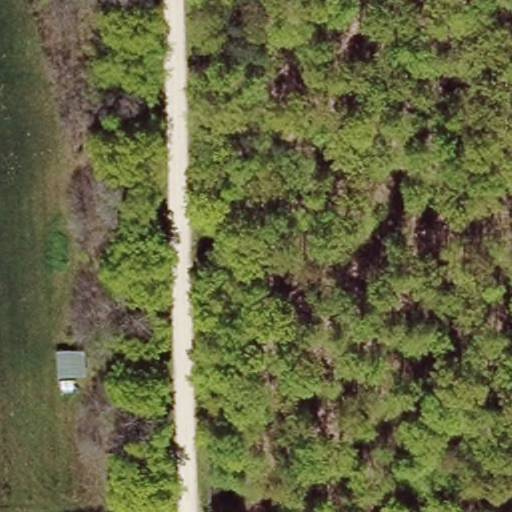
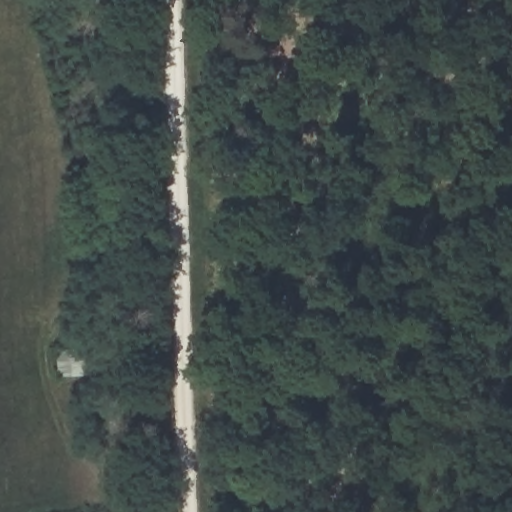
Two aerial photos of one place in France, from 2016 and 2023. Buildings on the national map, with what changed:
unchanged [(84,350),(86,376),(59,377),(57,351),(84,350)]

